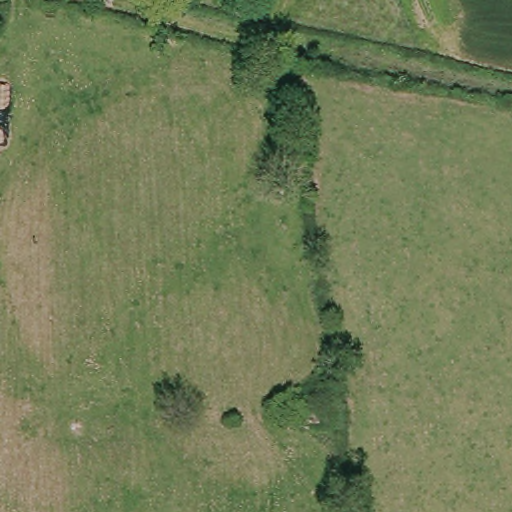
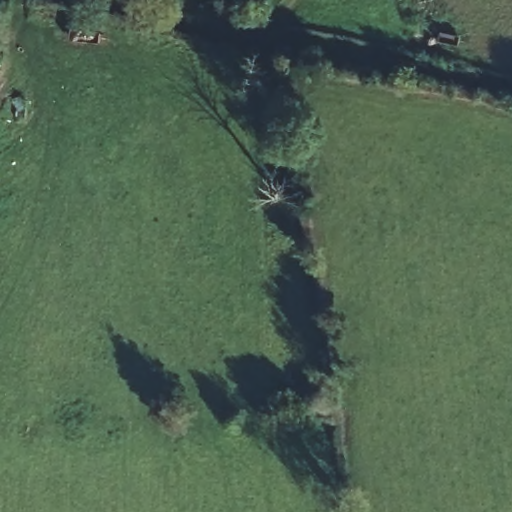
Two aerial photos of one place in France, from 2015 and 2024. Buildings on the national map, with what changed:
[]

